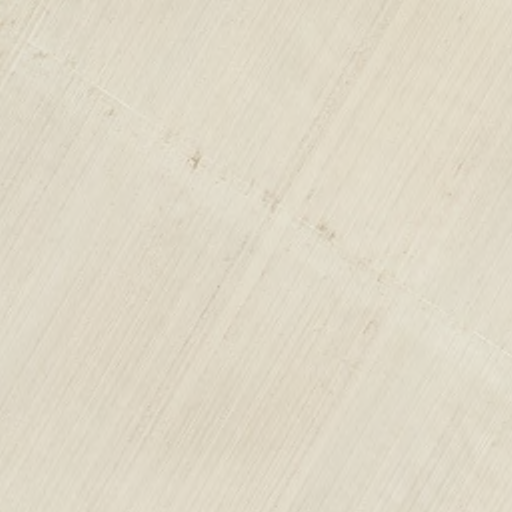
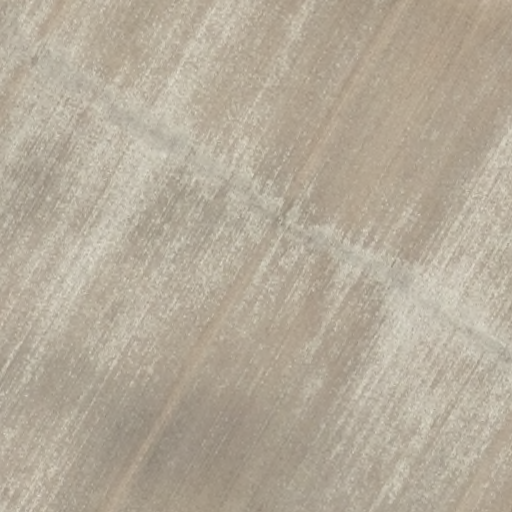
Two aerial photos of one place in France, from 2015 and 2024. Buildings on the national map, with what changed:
[]

